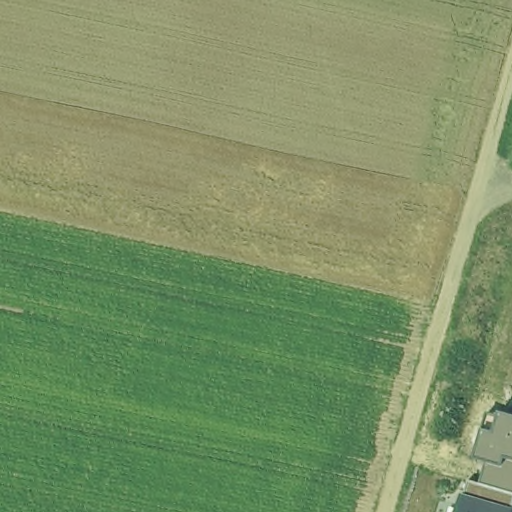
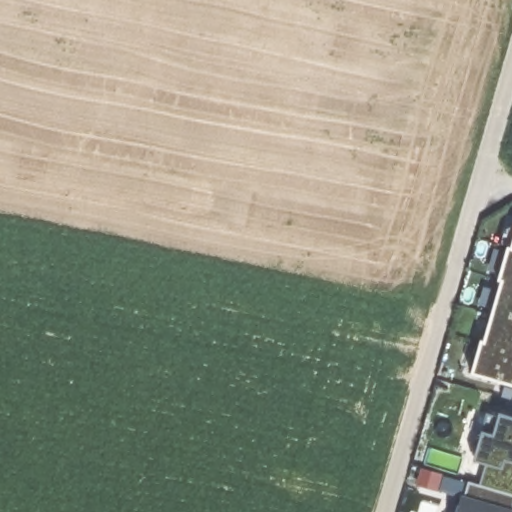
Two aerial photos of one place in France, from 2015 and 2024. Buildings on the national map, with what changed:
new [(470,374),(480,338),(484,340),(501,280),(498,279),(507,248),(504,248),(499,241),(504,228),(512,224),(512,386),(470,374)]
unchanged [(501,412),(512,415),(512,512),(458,512),(463,494),(467,480),(479,483),(486,462),(474,459),(483,432),(488,412),(499,415),(501,412)]

